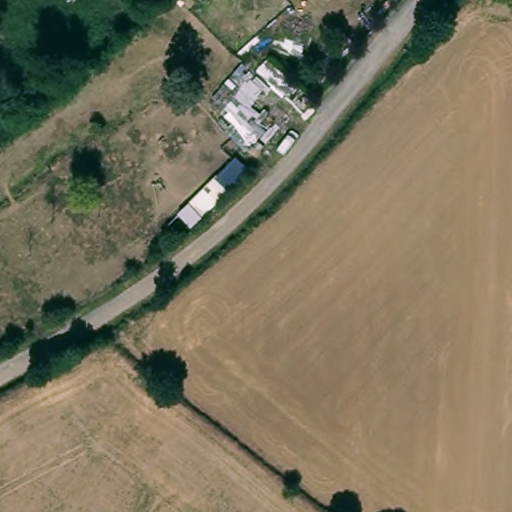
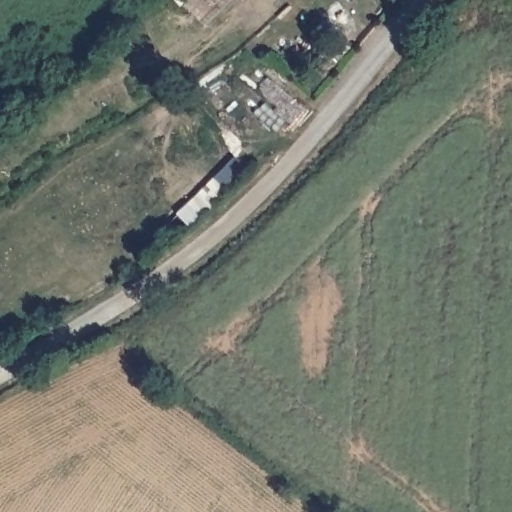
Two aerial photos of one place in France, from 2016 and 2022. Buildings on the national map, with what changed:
[]

